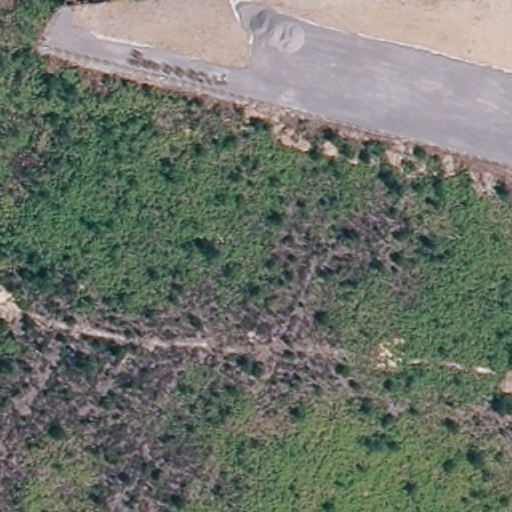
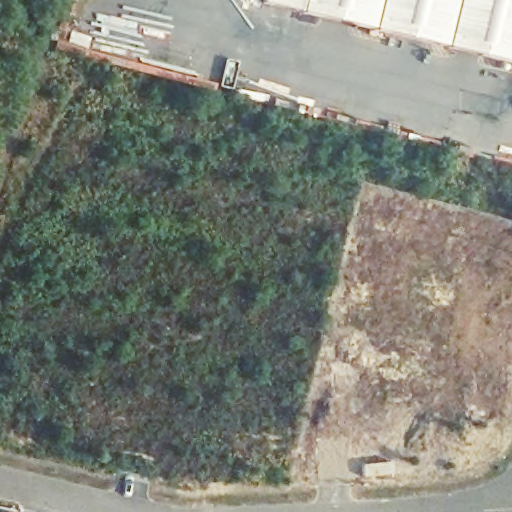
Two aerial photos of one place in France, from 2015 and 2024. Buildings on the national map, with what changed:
new [(263,2),(263,0),(512,0),(512,62),(263,2)]

